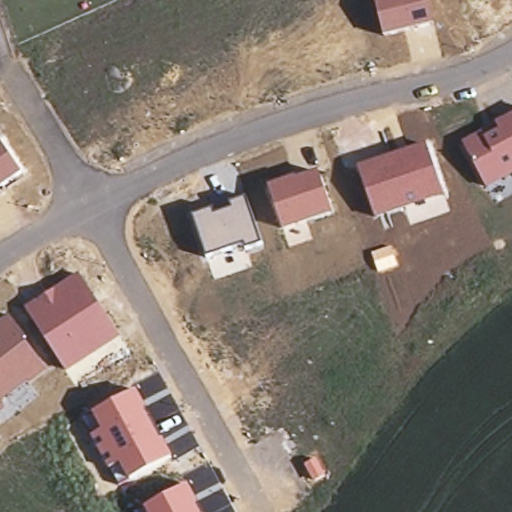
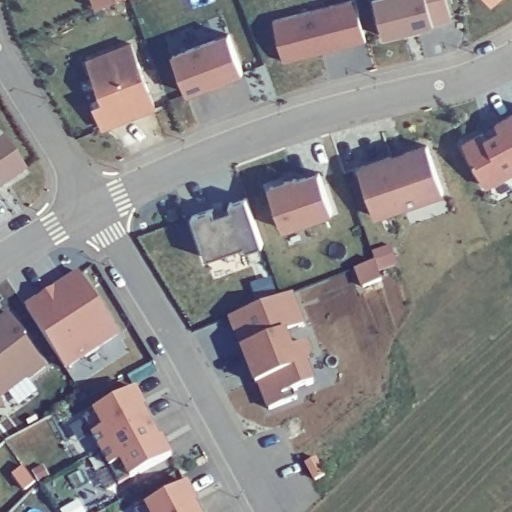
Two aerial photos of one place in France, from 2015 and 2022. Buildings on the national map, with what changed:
new [(358,0),(368,40),(286,61),(276,19),(354,0),(358,0)]
unchanged [(428,0),(434,24),(383,36),(375,0),(428,0)]
unchanged [(495,0),(494,1),(493,0),(495,0)]
new [(172,52),(228,32),(243,74),(187,93),(172,52)]
new [(93,105),(103,101),(86,59),(133,42),(157,108),(102,129),(93,105)]
unchanged [(486,129),(490,134),(498,129),(495,122),(512,114),(512,175),(486,188),(462,141),(486,129)]
unchanged [(21,173),(0,188),(0,140),(21,173)]
unchanged [(358,166),(427,143),(443,194),(375,219),(358,166)]
unchanged [(268,185),(319,169),(333,213),(283,229),(268,185)]
unchanged [(193,215),(214,208),(216,214),(232,208),(230,203),(246,197),(261,243),(245,249),(243,244),(207,256),(193,215)]
new [(374,253),(393,247),(400,265),(380,272),(384,281),(366,288),(359,269),(377,262),(374,253)]
unchanged [(25,307),(80,272),(119,338),(66,371),(25,307)]
new [(293,295),(305,326),(286,334),(293,351),(308,344),(312,355),(308,365),(315,384),(296,392),(299,399),(271,411),(261,384),(264,383),(257,366),(251,368),(232,319),(293,295)]
unchanged [(10,314),(47,369),(30,383),(27,381),(0,400),(6,408),(0,412),(0,320),(10,314)]
unchanged [(119,484),(110,467),(106,468),(90,436),(92,434),(83,418),(92,413),(136,389),(172,456),(128,478),(119,484)]
unchanged [(145,507),(188,483),(204,512),(136,512),(145,507)]

